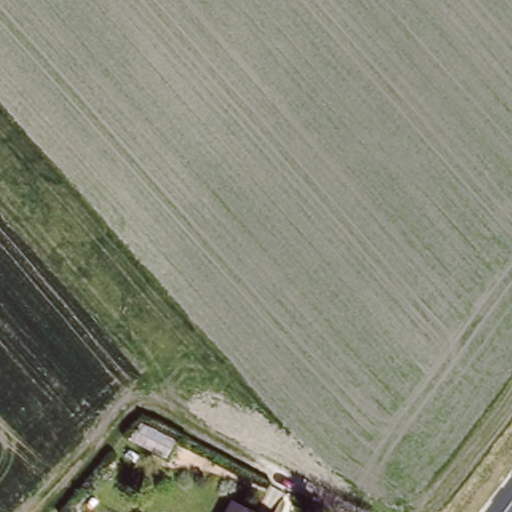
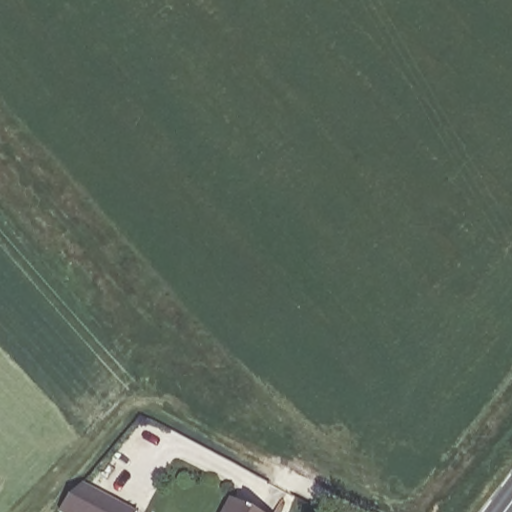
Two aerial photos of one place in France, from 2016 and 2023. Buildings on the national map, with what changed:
new [(138,512),(61,512),(84,483),(138,512)]
unchanged [(265,512),(233,512),(240,499),(265,512)]

